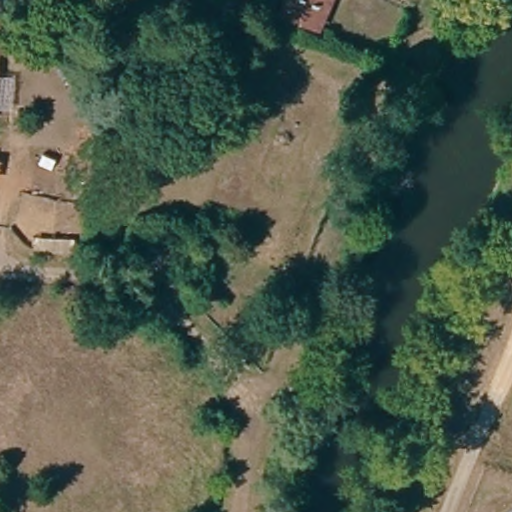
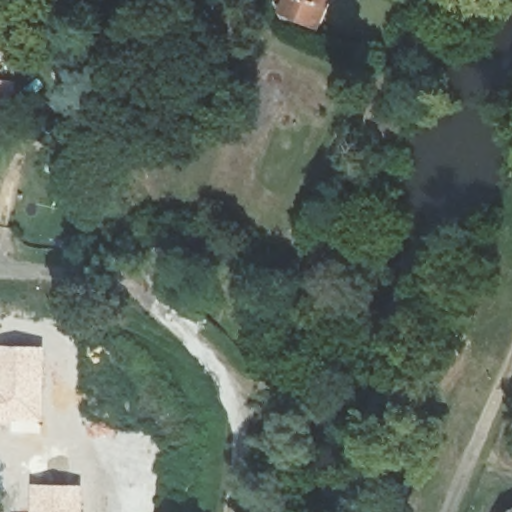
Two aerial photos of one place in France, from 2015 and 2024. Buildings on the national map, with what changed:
unchanged [(279,0),(328,0),(314,36),(272,14),(279,0)]
new [(46,346),(43,422),(0,420),(0,344),(46,346)]
new [(32,482),(84,483),(84,512),(31,512),(32,482)]

